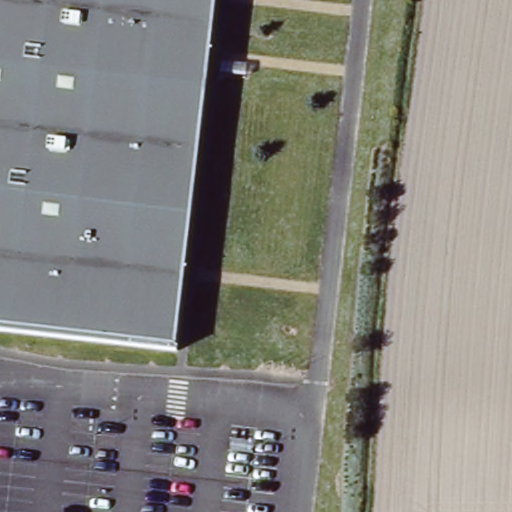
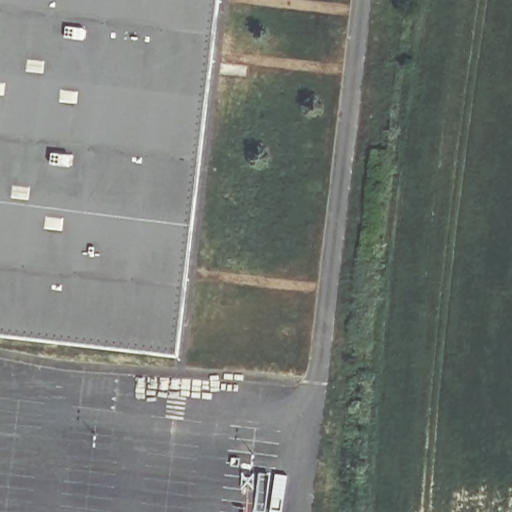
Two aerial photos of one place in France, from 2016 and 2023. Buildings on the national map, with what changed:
unchanged [(0,334),(0,0),(219,0),(183,353),(0,334)]

